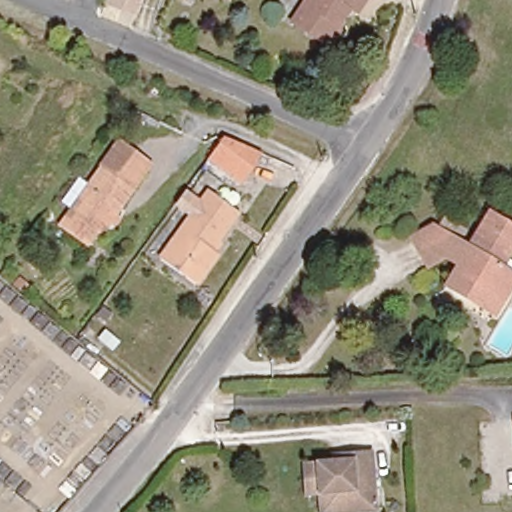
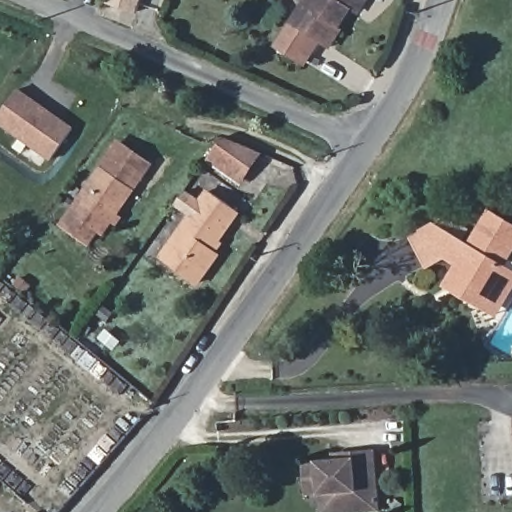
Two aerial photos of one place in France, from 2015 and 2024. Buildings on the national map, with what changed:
unchanged [(100,0),(134,0),(128,17),(98,6),(100,0)]
unchanged [(318,55),(286,32),(309,0),(369,0),(362,9),(351,25),(344,20),(318,55)]
new [(50,161),(0,127),(0,114),(19,87),(74,127),(50,161)]
unchanged [(222,140),(257,152),(239,179),(207,158),(222,140)]
unchanged [(118,223),(112,218),(98,239),(66,216),(100,169),(117,145),(126,152),(146,166),(128,191),(131,193),(120,208),(126,212),(118,223)]
unchanged [(219,254),(198,283),(162,255),(194,213),(178,201),(182,197),(188,188),(203,200),(211,191),(241,214),(214,250),(219,254)]
unchanged [(458,284),(451,280),(462,260),(448,251),(430,261),(415,233),(435,221),(471,241),(490,208),(512,220),(512,250),(506,260),(512,264),(512,289),(508,295),(500,309),(476,295),(458,284)]
unchanged [(313,492),(299,493),(296,461),(304,460),(326,457),(325,449),(345,448),(368,447),(369,459),(373,509),(334,512),(315,512),(313,492)]

